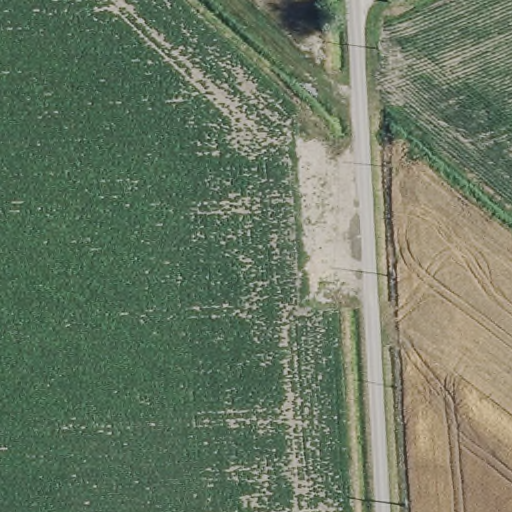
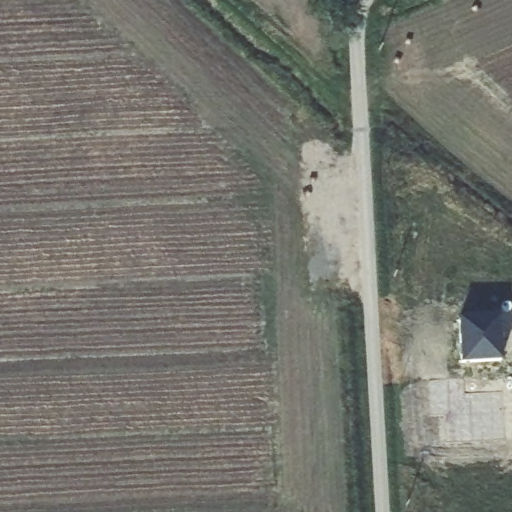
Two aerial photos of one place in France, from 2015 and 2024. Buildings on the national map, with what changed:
new [(501,317),(504,359),(465,361),(462,320),(501,317)]

